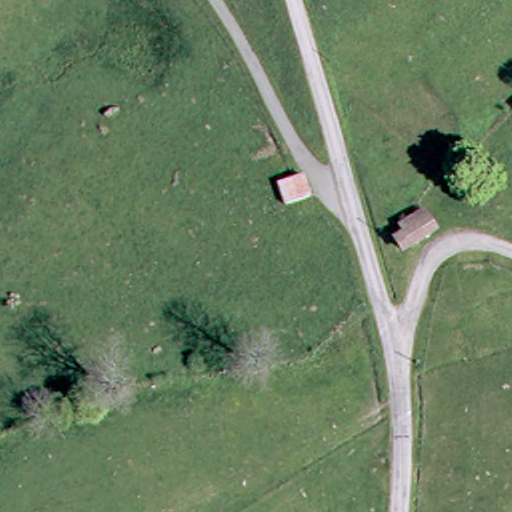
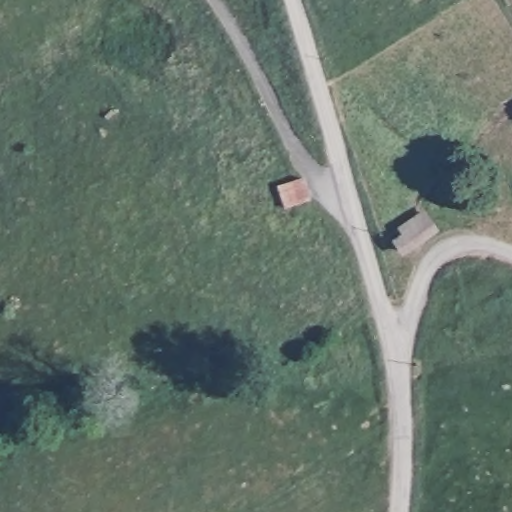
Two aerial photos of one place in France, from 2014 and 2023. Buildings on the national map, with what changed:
unchanged [(293,175),(301,197),(276,207),(270,184),(293,175)]
unchanged [(396,224),(420,207),(427,221),(428,223),(416,231),(403,240),(394,227),(396,224)]

